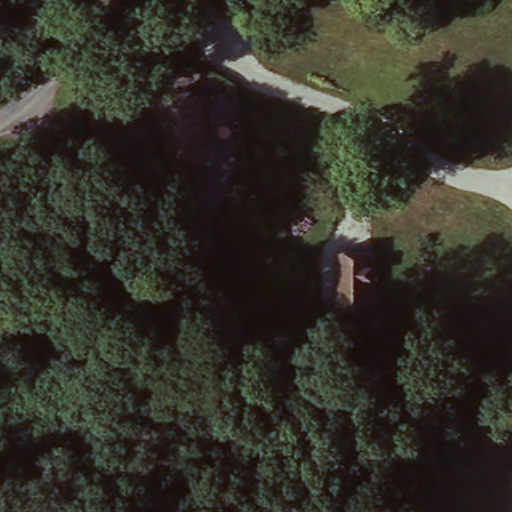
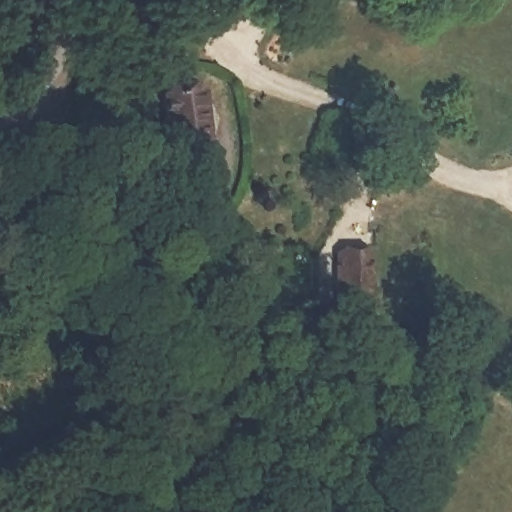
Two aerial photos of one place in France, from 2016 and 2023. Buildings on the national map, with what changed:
unchanged [(199,165),(166,167),(159,82),(191,80),(199,165)]
unchanged [(363,309),(331,305),(338,255),(370,259),(363,309)]

